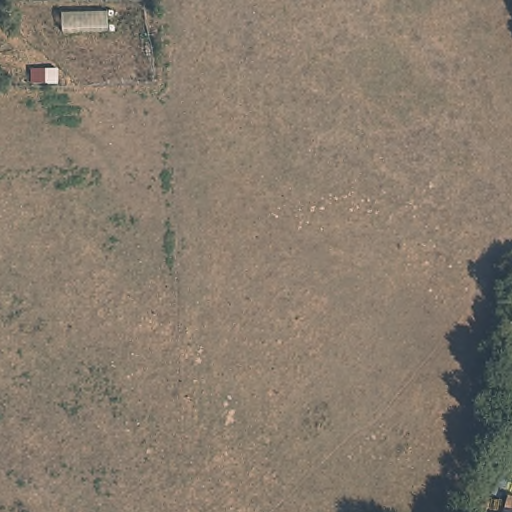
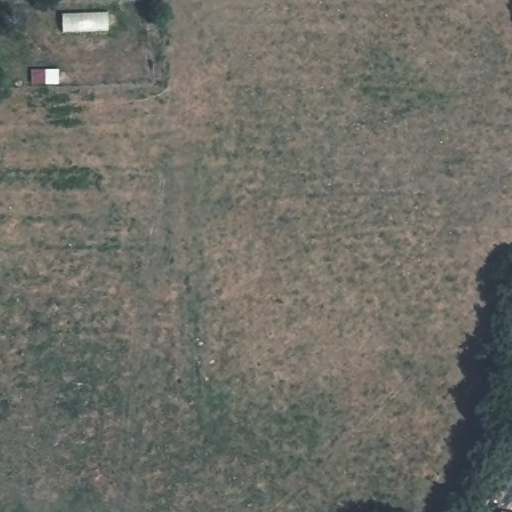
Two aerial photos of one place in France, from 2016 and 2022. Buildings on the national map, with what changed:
[]

